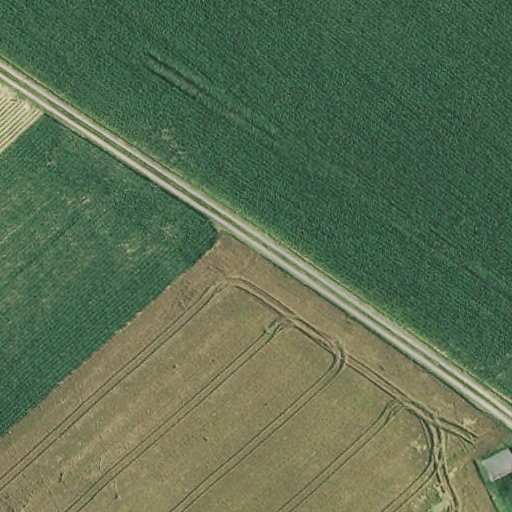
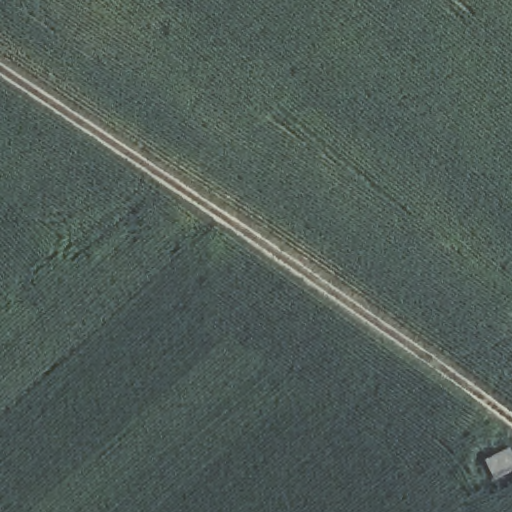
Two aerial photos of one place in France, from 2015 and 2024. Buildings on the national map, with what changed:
unchanged [(512,454),(512,476),(502,483),(488,462),(509,448),(512,454)]

